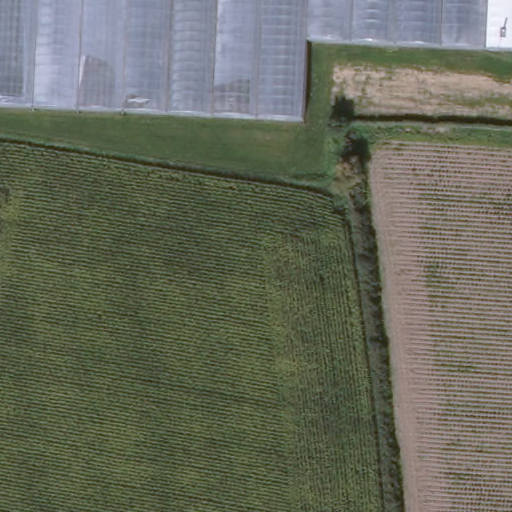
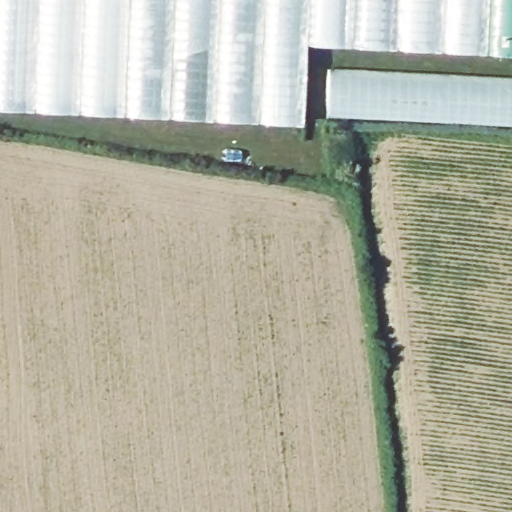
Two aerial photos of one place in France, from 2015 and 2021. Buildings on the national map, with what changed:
unchanged [(512,57),(309,50),(304,128),(0,113),(0,0),(512,0),(512,57)]
new [(512,82),(512,121),(328,111),(330,71),(512,82)]

